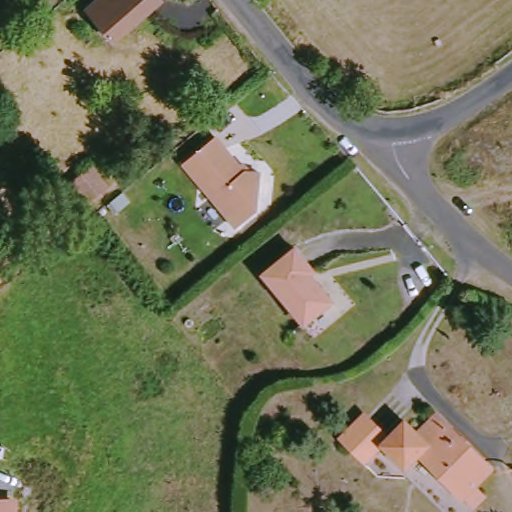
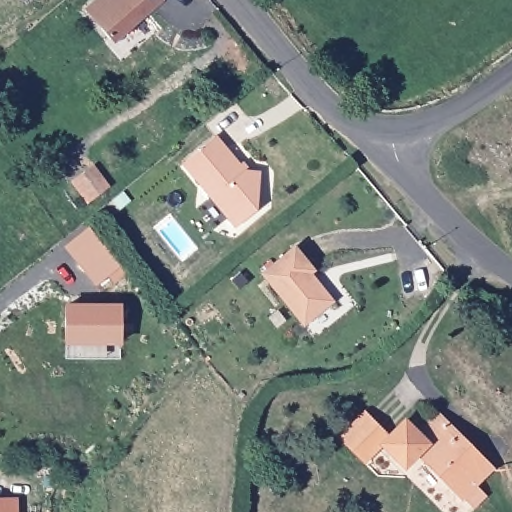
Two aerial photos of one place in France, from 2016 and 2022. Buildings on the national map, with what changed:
unchanged [(168,0),(170,3),(122,41),(100,14),(116,0),(168,0)]
unchanged [(230,219),(186,163),(219,138),(247,173),(262,174),(257,214),(237,229),(230,219)]
unchanged [(98,168),(112,188),(88,203),(75,182),(98,168)]
new [(64,247),(88,227),(121,266),(96,285),(64,247)]
unchanged [(300,248),(320,272),(313,276),(317,283),(323,284),(339,304),(310,327),(267,274),(300,248)]
new [(65,344),(65,303),(122,304),(122,346),(65,344)]
unchanged [(485,512),(480,512),(472,503),(425,453),(411,465),(390,445),(371,462),(347,438),(373,411),(395,434),(412,420),(425,432),(445,412),(502,470),(483,490),(494,502),(485,512)]
new [(0,498),(17,498),(17,512),(0,512),(0,498)]

